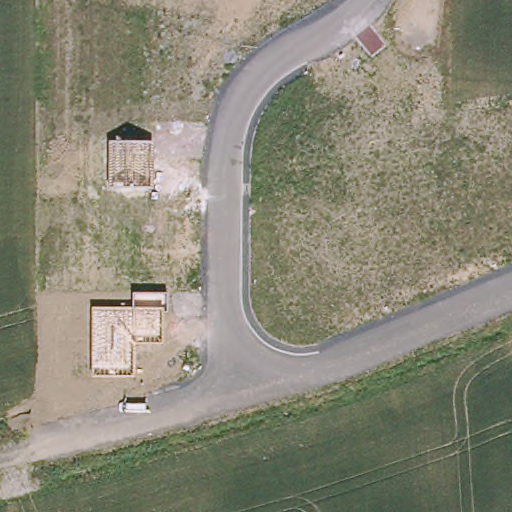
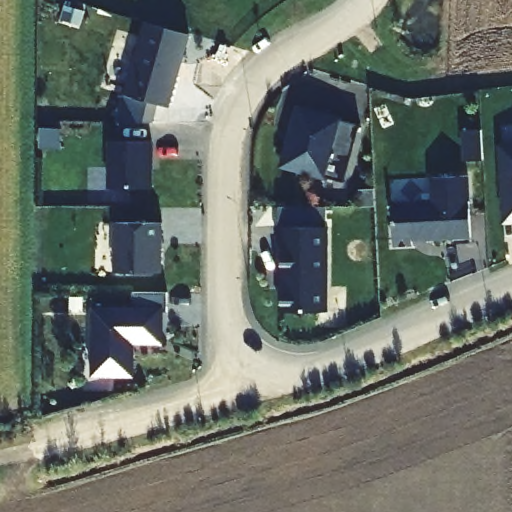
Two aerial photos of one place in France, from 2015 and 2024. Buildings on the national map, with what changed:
new [(172,106),(122,92),(143,18),(192,30),(172,106)]
new [(300,105),(362,120),(354,151),(346,149),(339,176),(286,163),(300,105)]
unchanged [(154,142),(153,189),(108,190),(108,141),(154,142)]
new [(512,219),(506,220),(502,142),(512,141),(512,219)]
new [(434,197),(434,174),(471,172),(474,239),(456,240),(455,234),(424,235),(424,234),(414,235),(415,241),(396,242),(394,200),(434,197)]
new [(117,217),(167,218),(166,236),(162,236),(162,263),(156,268),(117,267),(117,217)]
unchanged [(328,222),(329,307),(284,308),(284,242),(281,242),(281,223),(328,222)]
unchanged [(132,307),(132,292),(168,292),(168,312),(164,312),(163,343),(134,343),(134,377),(91,376),(91,307),(132,307)]

